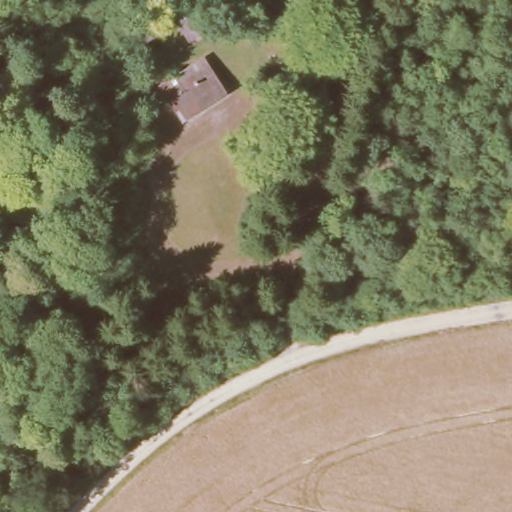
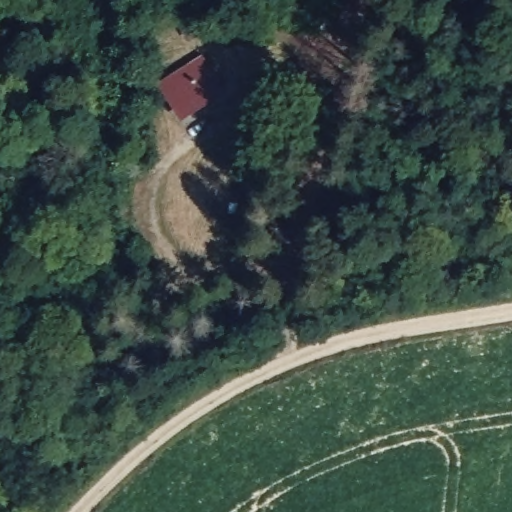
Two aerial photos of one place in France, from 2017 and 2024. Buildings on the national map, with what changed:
unchanged [(198,0),(199,0),(211,21),(183,32),(173,11),(198,0)]
unchanged [(209,55),(232,92),(180,122),(158,86),(209,55)]

